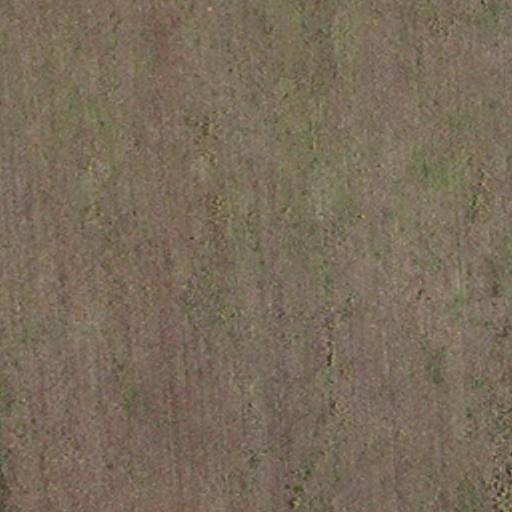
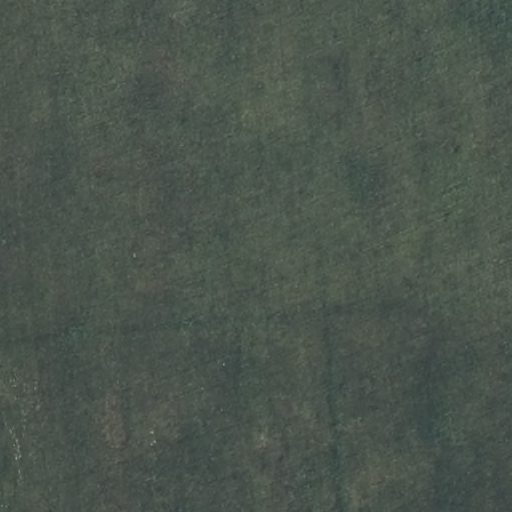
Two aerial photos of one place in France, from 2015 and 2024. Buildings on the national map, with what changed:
[]

